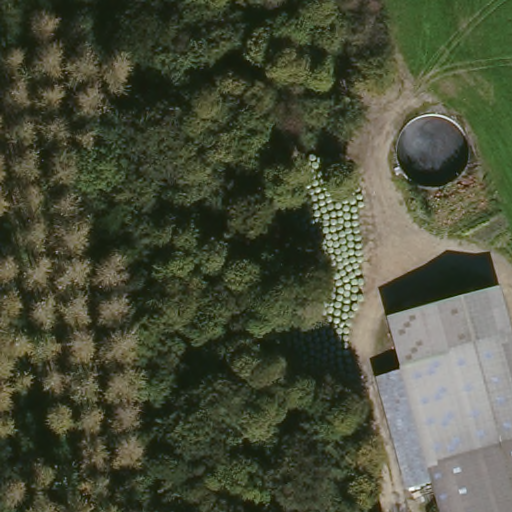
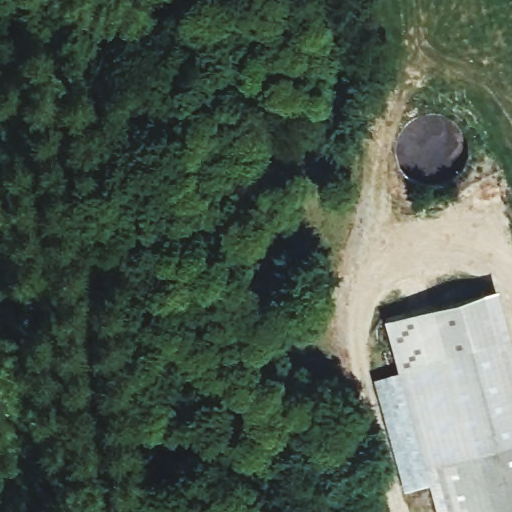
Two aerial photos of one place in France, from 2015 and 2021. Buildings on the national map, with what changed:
unchanged [(430,482),(398,369),(383,313),(498,283),(512,333),(512,512),(438,512),(430,482)]
unchanged [(430,482),(407,491),(404,492),(399,474),(392,448),(380,400),(374,377),(398,369),(430,482)]

